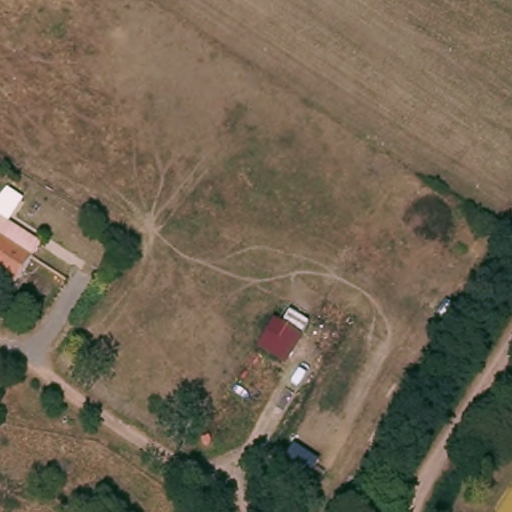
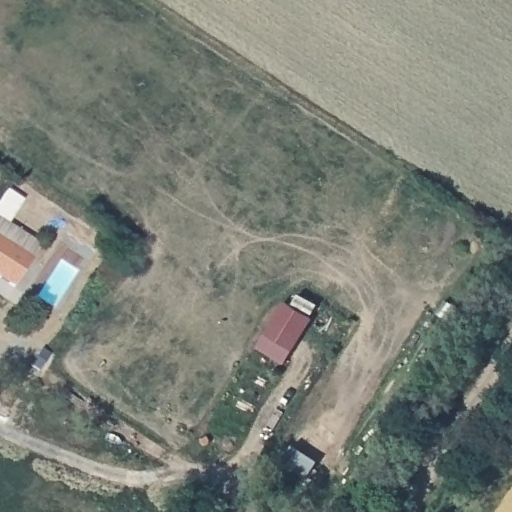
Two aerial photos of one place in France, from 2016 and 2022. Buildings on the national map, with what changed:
unchanged [(27,263),(10,290),(0,284),(0,245),(27,263)]
unchanged [(258,348),(275,318),(284,323),(290,313),(309,323),(302,336),(285,364),(258,348)]

